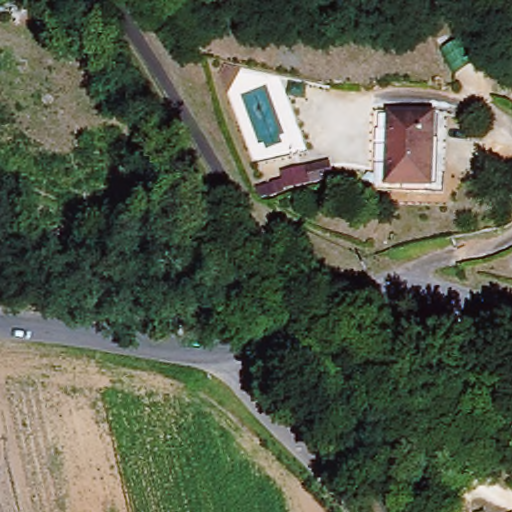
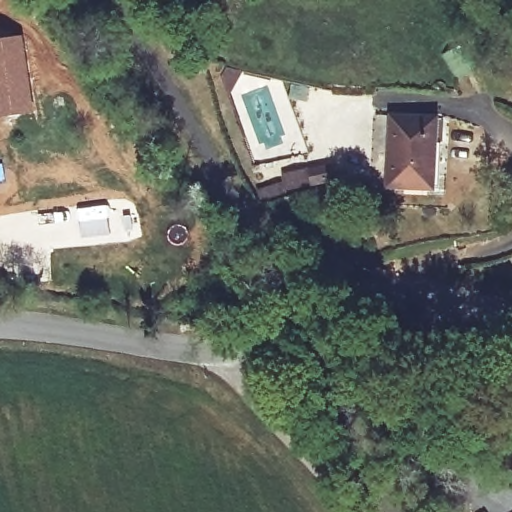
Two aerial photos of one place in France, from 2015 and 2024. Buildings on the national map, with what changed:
new [(0,118),(0,39),(21,35),(33,112),(0,118)]
unchanged [(395,109),(442,111),(440,184),(392,181),(392,185),(380,184),(381,145),(394,146),(395,109)]

